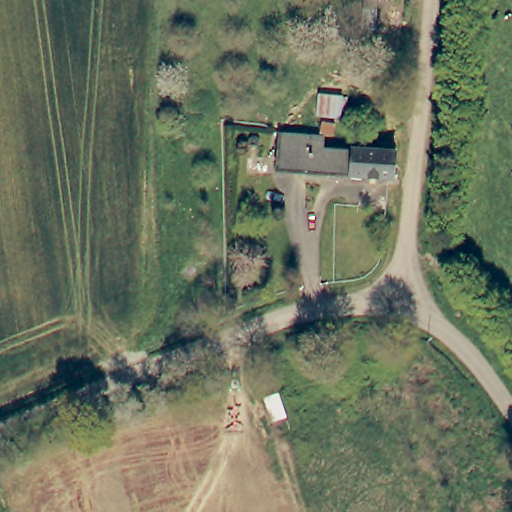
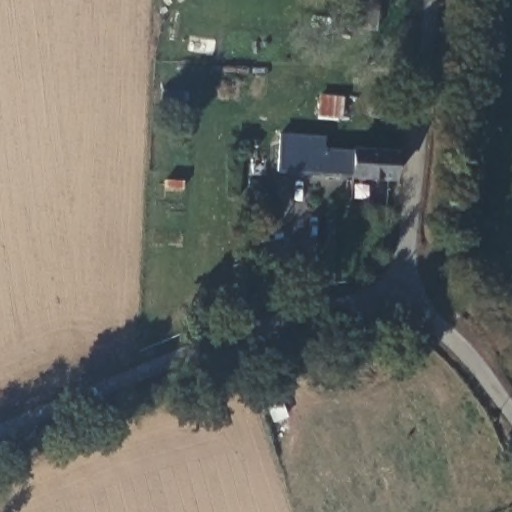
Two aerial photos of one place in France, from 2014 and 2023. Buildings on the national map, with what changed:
unchanged [(393,0),(390,35),(361,31),(364,0),(393,0)]
unchanged [(279,176),(280,136),(324,136),(322,151),(339,151),(338,177),(279,176)]
unchanged [(393,150),(394,178),(388,178),(338,177),(339,151),(393,149),(393,150)]

